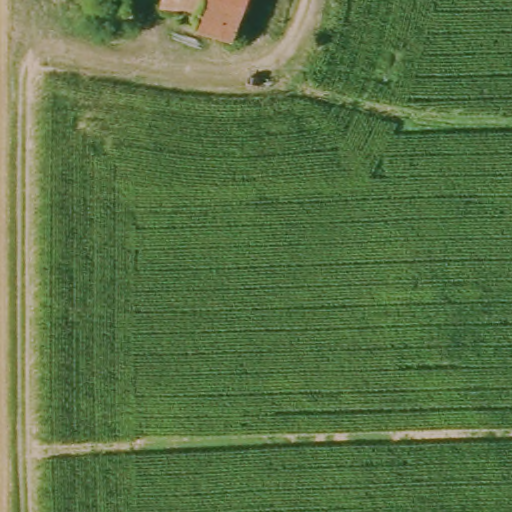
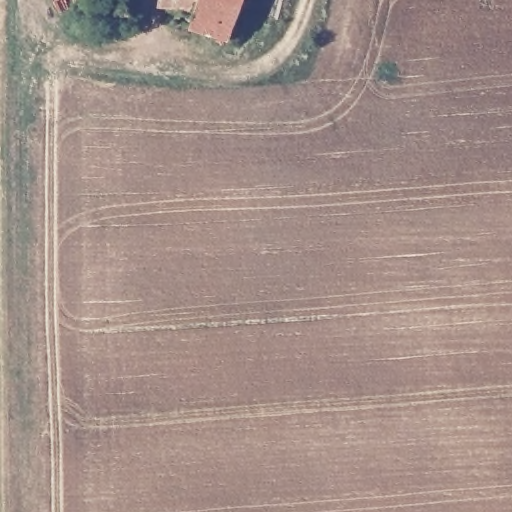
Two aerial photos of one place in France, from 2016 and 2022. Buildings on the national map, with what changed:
unchanged [(184,15),(188,0),(207,0),(240,12),(234,33),(184,15)]
unchanged [(244,0),(240,12),(207,0),(244,0)]

